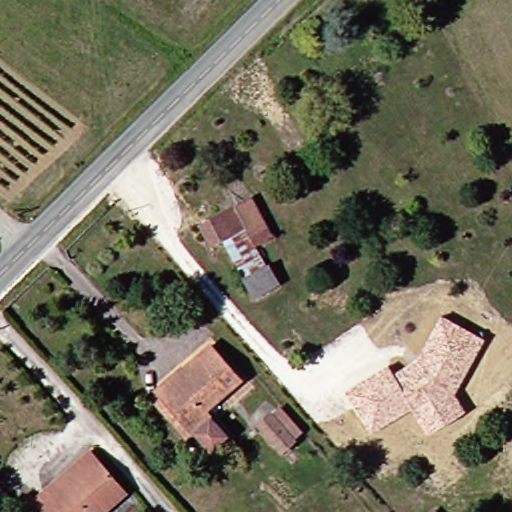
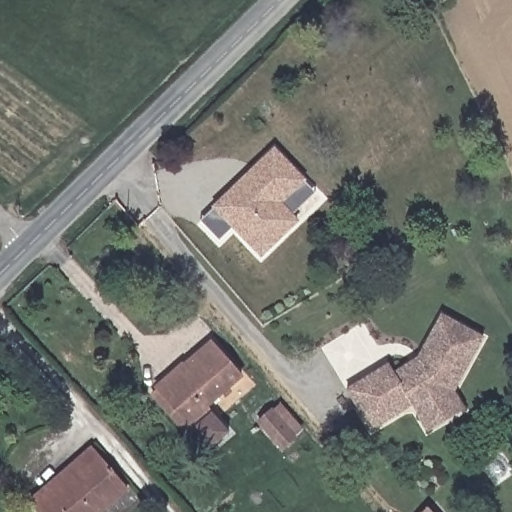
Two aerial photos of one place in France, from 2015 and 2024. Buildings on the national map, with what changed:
new [(307,180),(285,204),(304,224),(266,263),(212,207),(275,147),(307,180)]
demolished [(228,236),(219,241),(209,225),(257,198),(278,234),(261,243),(279,280),(258,290),(228,236)]
unchanged [(442,316),(483,337),(452,392),(462,410),(426,431),(412,407),(372,429),(347,389),(390,364),(393,372),(417,357),(442,316)]
unchanged [(230,435),(211,451),(190,425),(184,430),(155,394),(161,389),(215,343),(243,377),(208,408),(221,424),(230,435)]
unchanged [(276,407),(286,400),(307,427),(298,435),(283,447),(261,419),(276,407)]
unchanged [(44,512),(37,503),(53,488),(51,486),(96,447),(102,455),(132,491),(108,512),(44,512)]
demolished [(443,512),(432,512),(438,506),(443,512)]
new [(431,512),(426,512),(429,509),(431,512)]

